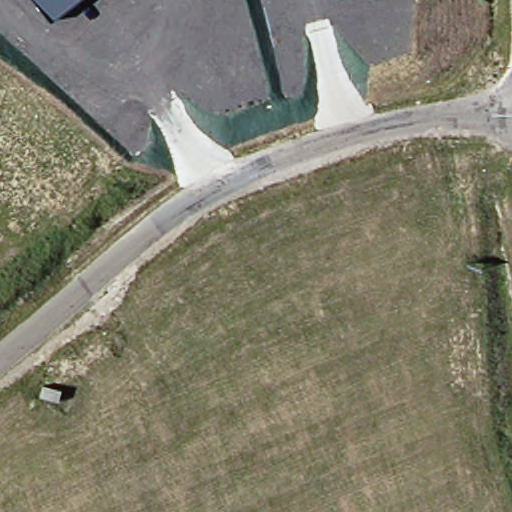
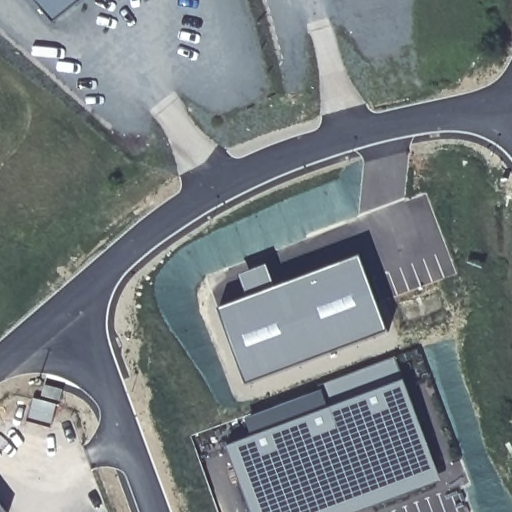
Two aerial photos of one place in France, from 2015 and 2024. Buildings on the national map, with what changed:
new [(34,0),(79,0),(51,21),(34,0)]
new [(387,331),(247,385),(218,308),(247,298),(239,276),(267,266),(276,287),(360,257),(387,331)]
new [(404,380),(441,481),(357,512),(251,512),(228,447),(252,437),(245,419),(320,391),(318,385),(395,358),(404,380)]
new [(0,503),(7,512),(0,512),(0,503)]

